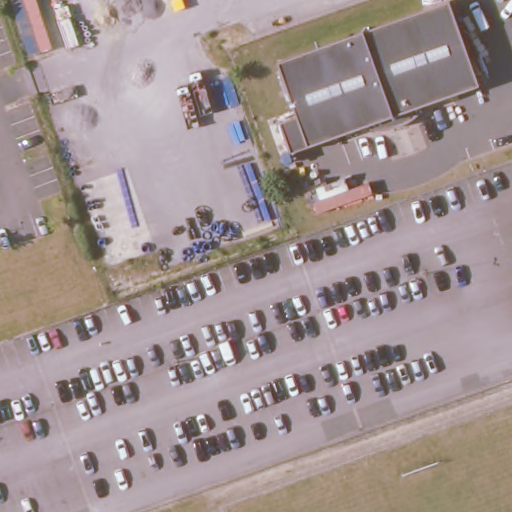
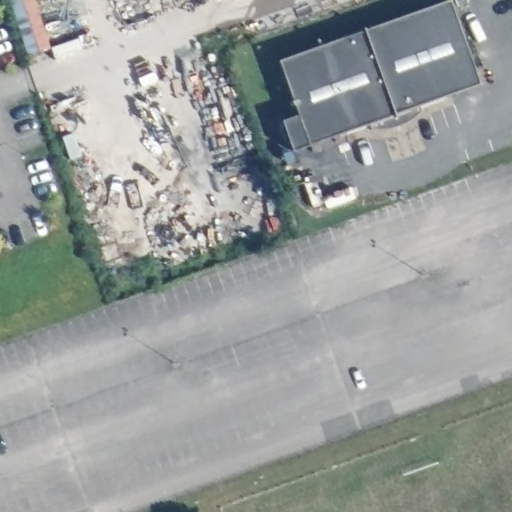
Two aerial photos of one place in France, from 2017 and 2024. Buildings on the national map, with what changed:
unchanged [(481,86),(291,157),(279,123),(299,117),(278,62),(448,1),(481,86)]

